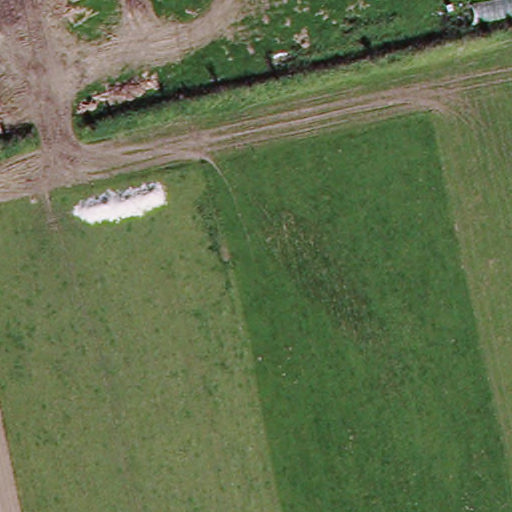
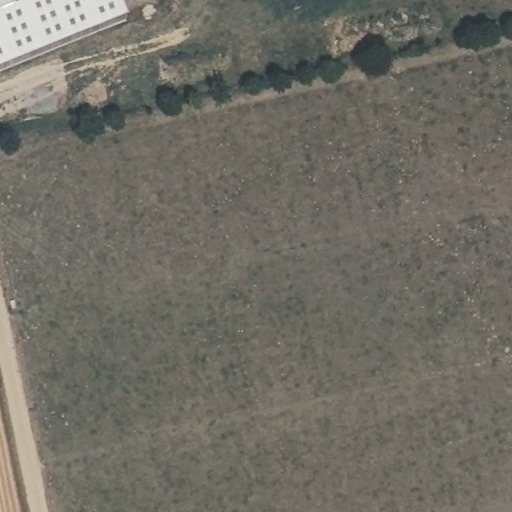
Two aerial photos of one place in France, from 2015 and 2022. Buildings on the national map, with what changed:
new [(126,21),(0,72),(0,0),(118,0),(126,21)]

